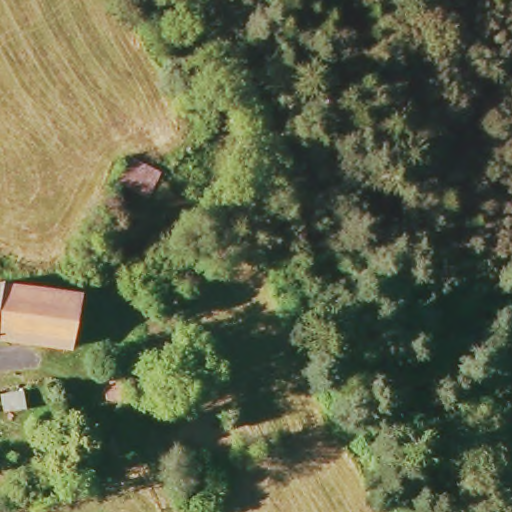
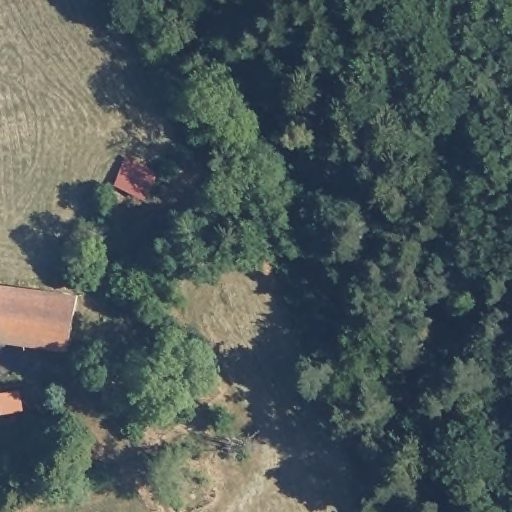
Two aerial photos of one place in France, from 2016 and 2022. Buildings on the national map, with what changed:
unchanged [(76,338),(7,327),(0,329),(0,277),(5,277),(82,290),(76,338)]
unchanged [(114,387),(136,375),(143,390),(122,401),(114,387)]
unchanged [(31,395),(35,412),(18,417),(13,400),(31,395)]

